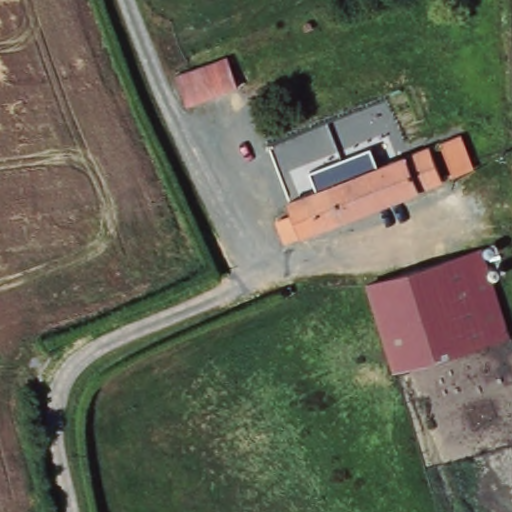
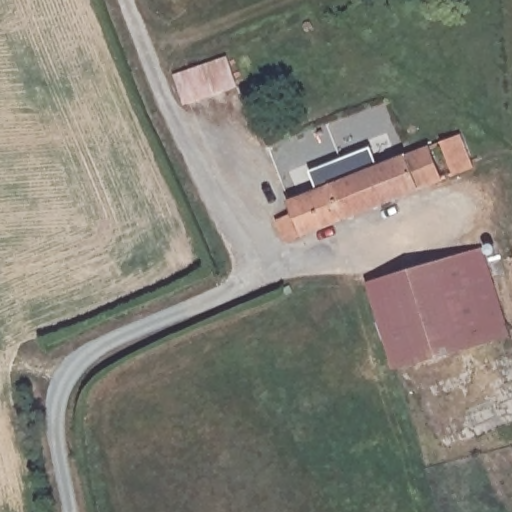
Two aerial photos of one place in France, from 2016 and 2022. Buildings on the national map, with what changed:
unchanged [(306,31),(304,27),(305,23),(308,22),(312,23),(314,27),(306,31)]
unchanged [(228,57),(237,87),(188,104),(185,105),(175,75),(228,57)]
unchanged [(459,175),(447,142),(466,135),(479,168),(459,175)]
unchanged [(287,242),(285,241),(277,222),(293,215),(288,203),(323,189),(316,172),(346,161),(352,178),(430,147),(443,179),(287,242)]
unchanged [(368,284),(483,249),(492,274),(511,336),(396,370),(368,284)]

